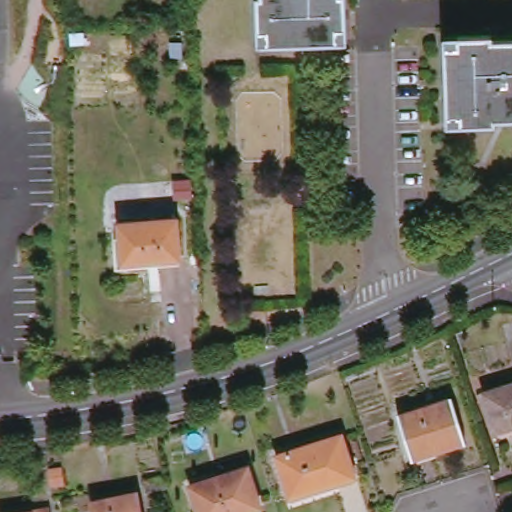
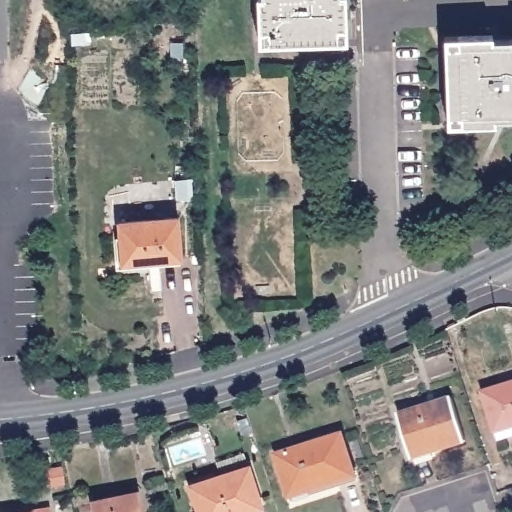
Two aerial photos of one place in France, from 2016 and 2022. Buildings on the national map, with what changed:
unchanged [(258,0),(343,0),(344,26),(345,40),(335,40),(267,42),(260,42),(259,29),(258,0)]
unchanged [(445,47),(445,37),(457,37),(490,36),(512,35),(512,117),(493,117),(493,122),(461,122),(449,124),(448,115),(445,47)]
unchanged [(120,224),(176,219),(179,257),(123,262),(120,224)]
unchanged [(485,393),(512,385),(512,427),(498,431),(485,393)]
unchanged [(439,452),(440,455),(420,461),(419,456),(415,457),(401,416),(452,400),(465,441),(445,447),(445,450),(439,452)]
unchanged [(294,504),(291,494),(277,456),(342,435),(356,476),(358,482),(294,504)]
unchanged [(190,485),(249,466),(262,506),(243,512),(198,512),(199,512),(190,485)]
unchanged [(137,491),(142,512),(97,512),(94,501),(137,491)]
unchanged [(51,512),(31,512),(51,509),(51,512)]

